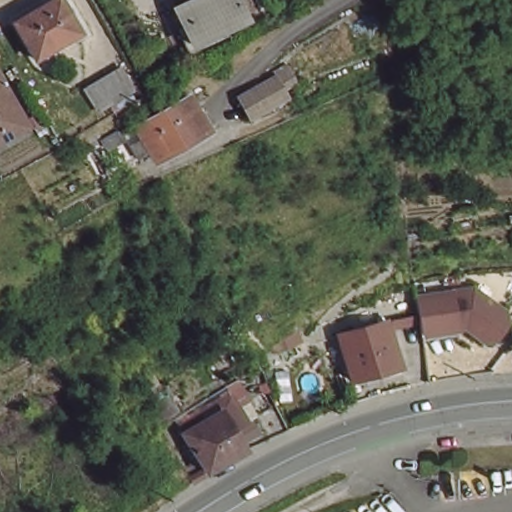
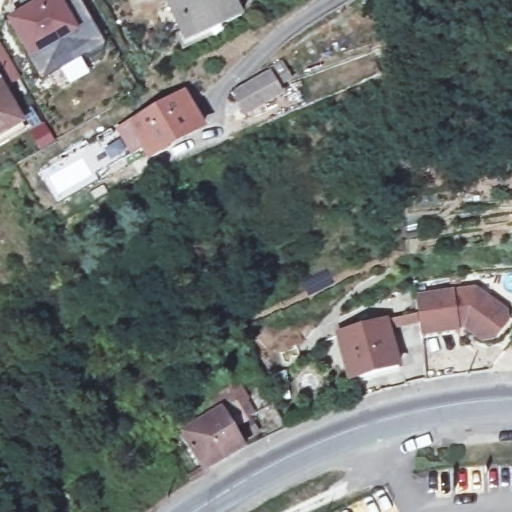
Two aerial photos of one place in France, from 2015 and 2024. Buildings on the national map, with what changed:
unchanged [(58,0),(77,32),(49,47),(50,50),(34,59),(13,21),(51,0),(58,0)]
unchanged [(235,0),(242,17),(187,42),(171,7),(187,0),(235,0)]
unchanged [(6,54),(23,84),(5,94),(22,124),(0,137),(0,57),(6,54)]
unchanged [(119,67),(132,89),(95,109),(84,87),(119,67)]
unchanged [(242,118),(232,98),(267,80),(265,76),(280,69),(287,81),(270,89),(276,101),(242,118)]
unchanged [(123,131),(195,92),(213,126),(159,153),(154,145),(137,155),(123,131)]
unchanged [(475,333),(472,331),(459,321),(459,317),(451,317),(452,322),(416,325),(412,291),(412,289),(469,282),(474,286),(502,307),(502,317),(495,326),(489,333),(475,333)]
unchanged [(349,380),(335,335),(384,320),(397,365),(349,380)]
unchanged [(182,432),(223,408),(245,448),(204,471),(182,432)]

